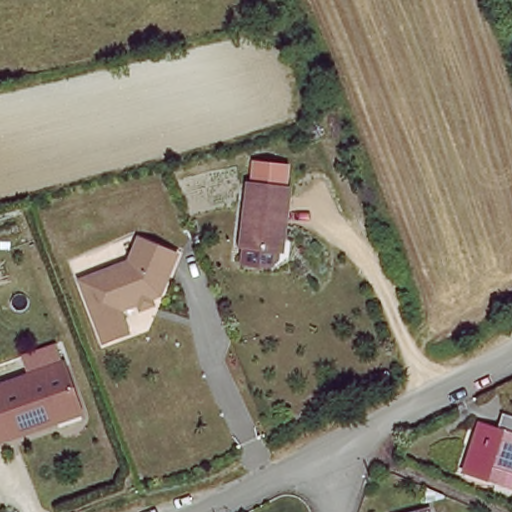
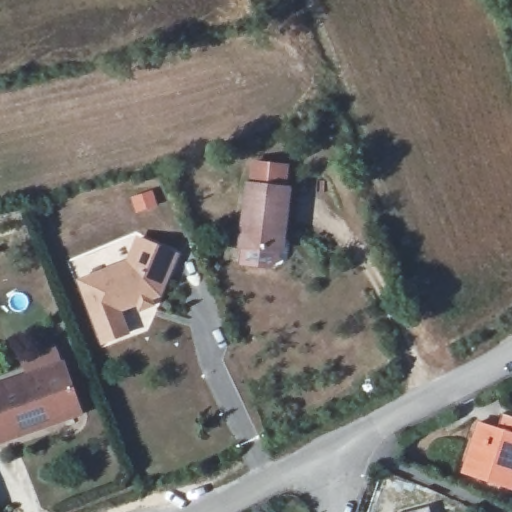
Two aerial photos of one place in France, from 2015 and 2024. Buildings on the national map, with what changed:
unchanged [(283,246),(243,241),(250,179),(290,184),(283,246)]
unchanged [(104,338),(97,321),(80,277),(129,258),(139,235),(176,250),(159,290),(118,306),(121,312),(127,329),(104,338)]
unchanged [(0,385),(69,361),(86,408),(61,417),(20,431),(0,438),(0,385)]
unchanged [(465,471),(482,421),(497,425),(501,412),(512,416),(512,487),(465,471)]
unchanged [(428,512),(424,512),(428,511),(428,512)]

